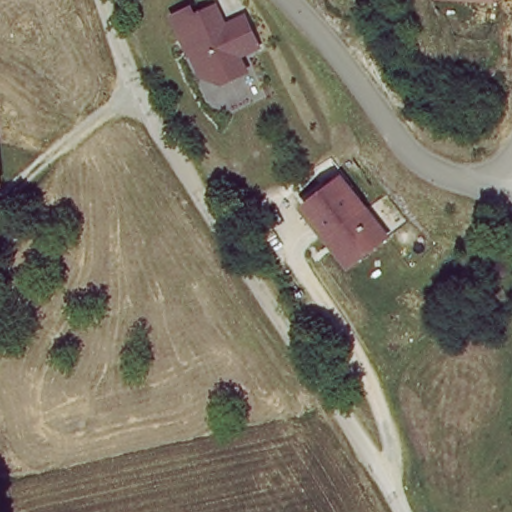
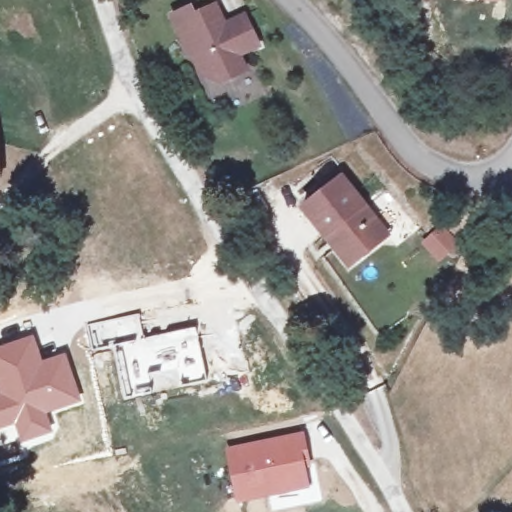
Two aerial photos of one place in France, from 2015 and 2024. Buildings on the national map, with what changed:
unchanged [(260,52),(241,61),(246,77),(222,87),(200,80),(194,62),(186,60),(172,19),(192,9),(197,15),(217,7),(226,26),(245,17),(260,52)]
unchanged [(0,191),(0,161),(5,190),(0,191)]
unchanged [(392,237),(350,271),(297,213),(343,180),(392,237)]
new [(140,312),(145,336),(113,345),(91,350),(85,323),(140,312)]
new [(145,336),(196,325),(208,380),(125,399),(113,345),(145,336)]
new [(44,360),(66,352),(83,402),(49,414),(54,431),(21,443),(14,425),(0,430),(0,345),(33,333),(44,360)]
new [(238,504),(227,448),(303,432),(312,467),(306,468),(309,488),(238,504)]

